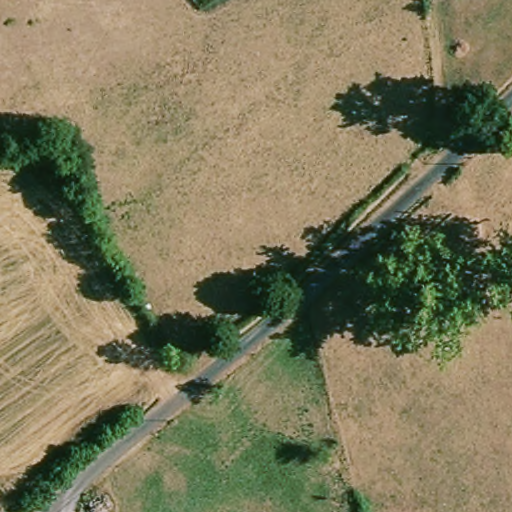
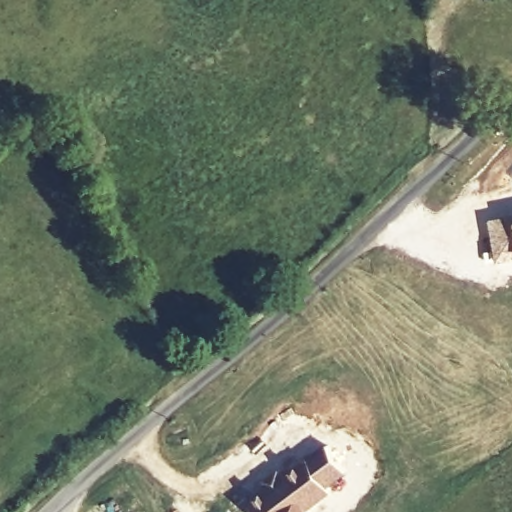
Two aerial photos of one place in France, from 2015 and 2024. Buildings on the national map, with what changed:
new [(493,219),(512,215),(512,259),(501,261),(493,219)]
new [(313,509),(315,512),(261,512),(251,500),(268,487),(264,482),(281,468),(286,473),(325,443),(348,473),(330,486),(334,492),(313,509)]

